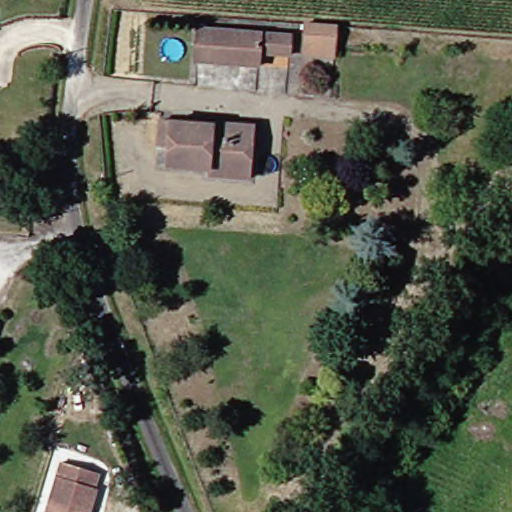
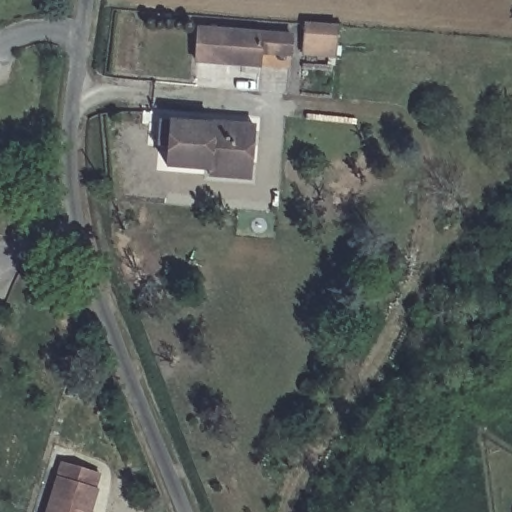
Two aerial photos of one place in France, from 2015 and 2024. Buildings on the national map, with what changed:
unchanged [(202,58),(204,25),(266,32),(296,35),(295,56),(265,52),(265,65),(202,58)]
unchanged [(344,34),(343,53),(310,50),(311,31),(344,34)]
unchanged [(216,171),(173,165),(174,143),(163,142),(166,118),(176,118),(218,122),(218,119),(244,121),(259,124),(257,142),(255,168),(255,180),(216,176),(216,171)]
unchanged [(104,471),(98,485),(105,488),(96,512),(52,512),(69,459),(104,471)]

